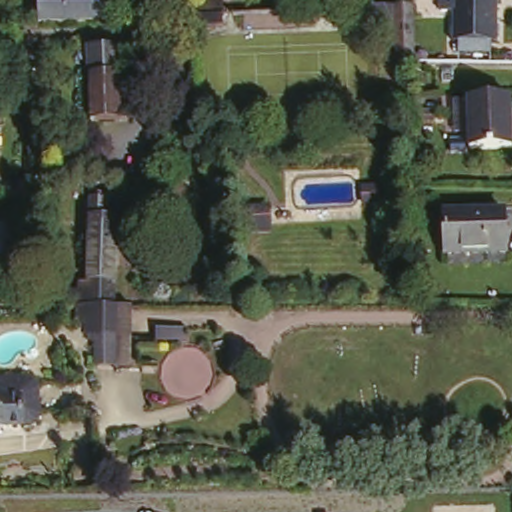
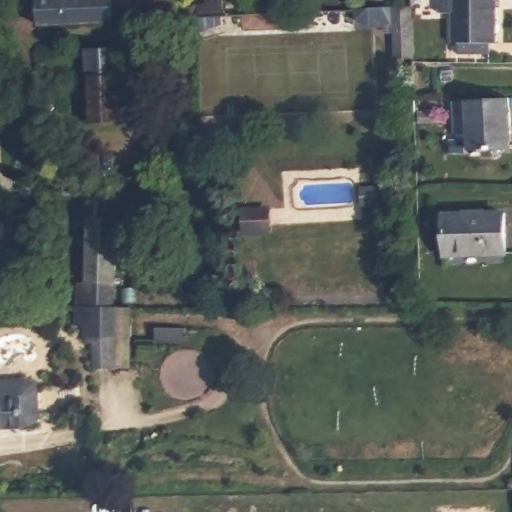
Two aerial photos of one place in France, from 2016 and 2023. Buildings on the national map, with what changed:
unchanged [(113,0),(113,24),(45,28),(38,27),(38,1),(38,0),(113,0)]
unchanged [(495,34),(496,46),(465,48),(464,36),(460,36),(458,6),(443,8),(443,0),(499,0),(501,34),(495,34)]
unchanged [(411,58),(389,59),(387,17),(380,18),(379,6),(408,5),(411,58)]
unchanged [(197,26),(182,26),(182,16),(196,15),(197,26)]
unchanged [(120,46),(123,118),(92,119),(89,48),(120,46)]
unchanged [(512,133),(512,143),(471,145),(470,128),(455,129),(454,97),(510,94),(512,133)]
unchanged [(433,113),(434,125),(418,125),(418,114),(433,113)]
unchanged [(464,140),(464,150),(450,150),(450,141),(464,140)]
unchanged [(78,311),(65,306),(66,287),(74,287),(74,283),(83,283),(86,203),(103,203),(103,210),(114,210),(111,262),(110,311),(78,311)]
unchanged [(505,215),(506,256),(447,257),(445,217),(505,215)]
unchanged [(3,220),(3,258),(0,258),(0,220),(3,220)]
unchanged [(85,340),(85,327),(78,327),(78,311),(110,311),(128,311),(127,372),(92,372),(92,345),(85,345),(85,340)]
unchanged [(188,325),(188,337),(156,338),(157,325),(188,325)]
unchanged [(27,426),(0,427),(0,379),(20,378),(23,374),(41,382),(41,411),(28,411),(27,426)]

